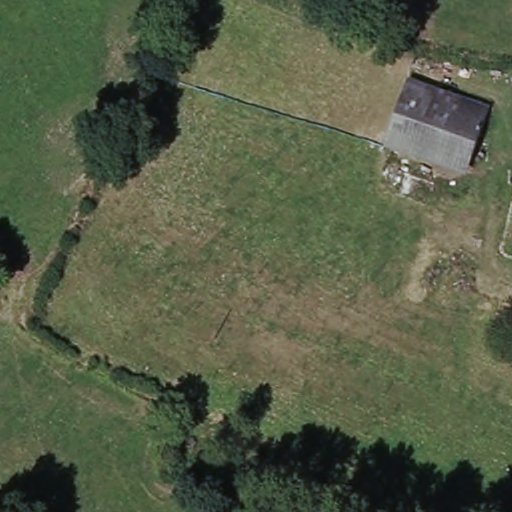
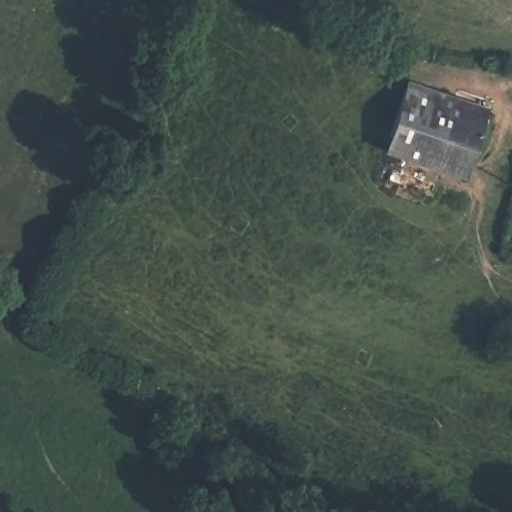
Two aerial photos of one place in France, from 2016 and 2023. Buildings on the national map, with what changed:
unchanged [(483,129),(466,184),(407,165),(385,159),(404,104),(425,110),(483,129)]

